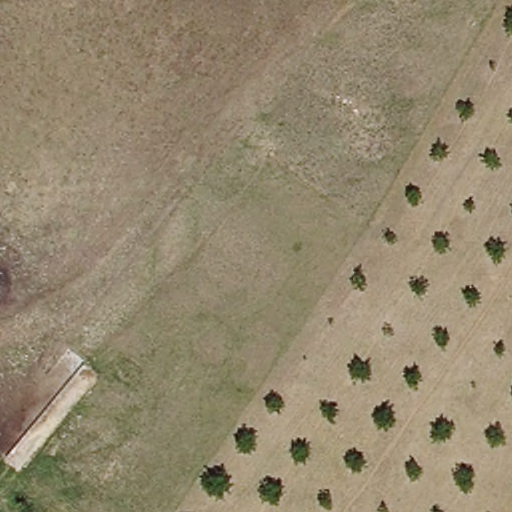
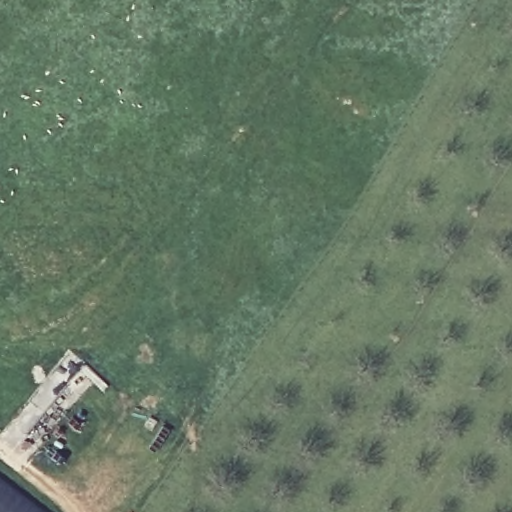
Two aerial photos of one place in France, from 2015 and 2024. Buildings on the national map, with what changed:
new [(0,478),(43,512),(0,512),(0,478)]

